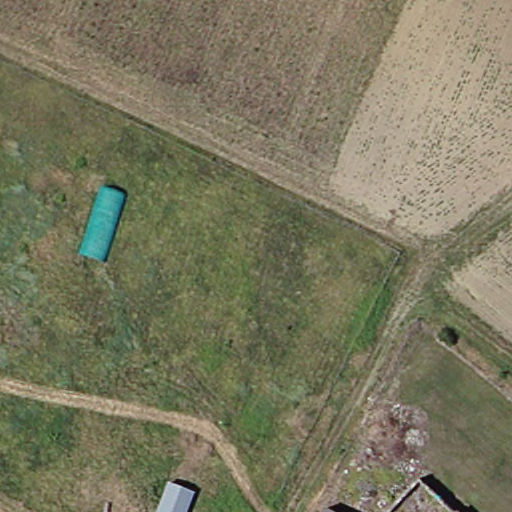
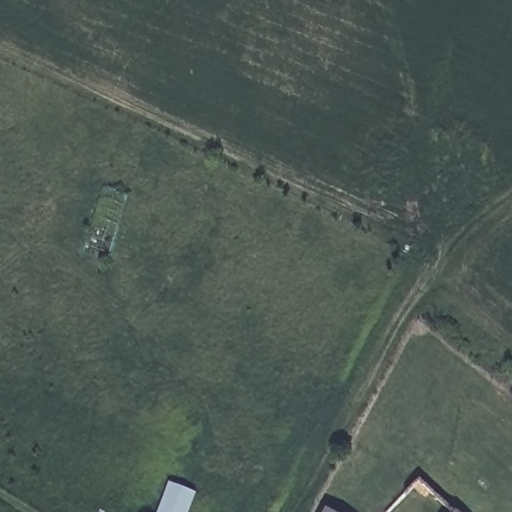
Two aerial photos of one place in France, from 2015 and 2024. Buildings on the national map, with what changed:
unchanged [(75,258),(100,189),(125,197),(101,269),(75,258)]
unchanged [(190,491),(182,512),(153,512),(165,486),(190,491)]
unchanged [(325,512),(322,512),(323,511),(325,512)]

